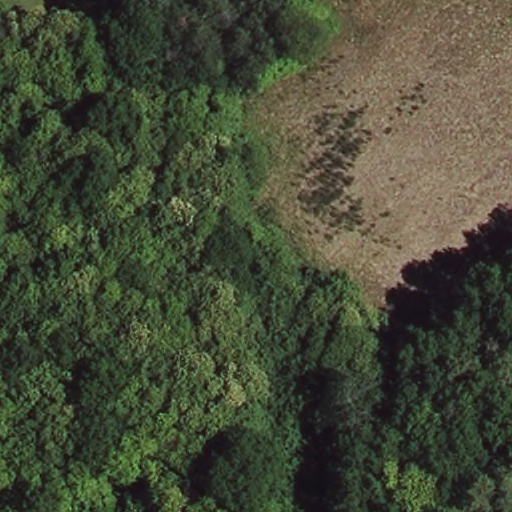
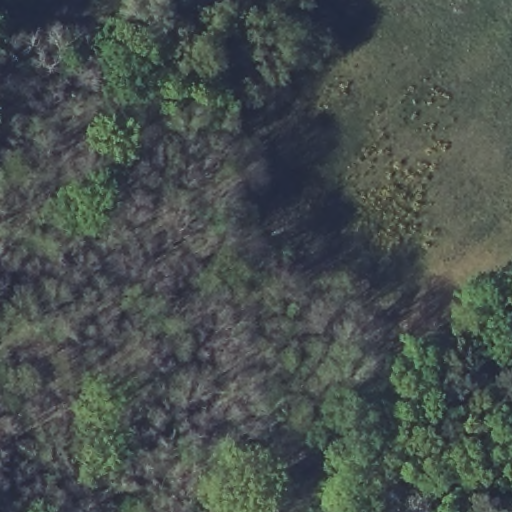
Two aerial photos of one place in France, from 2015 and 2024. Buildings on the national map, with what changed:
unchanged [(324,19),(316,39),(283,26),(292,6),(324,19)]

